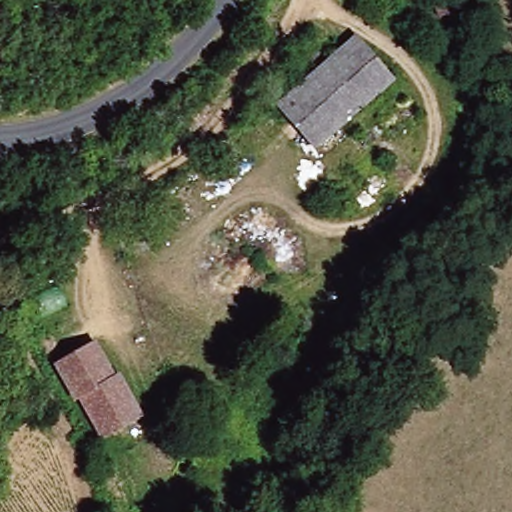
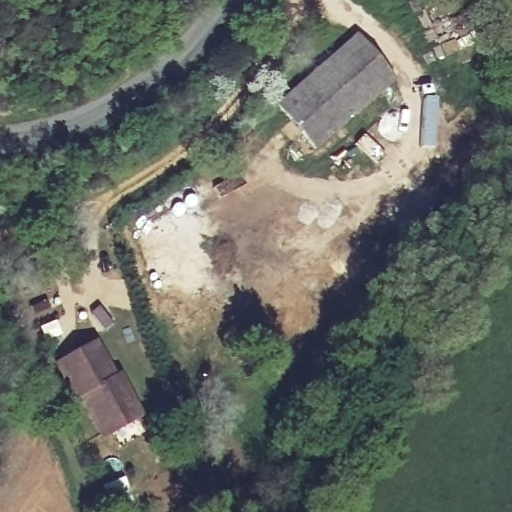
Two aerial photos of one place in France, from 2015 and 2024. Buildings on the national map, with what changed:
unchanged [(441,11),(465,5),(471,24),(446,30),(441,11)]
unchanged [(400,80),(382,97),(338,50),(356,33),(400,80)]
unchanged [(322,152),(279,104),(338,50),(382,97),(322,152)]
unchanged [(111,427),(87,390),(83,393),(60,361),(93,339),(113,368),(117,365),(142,405),(111,427)]

